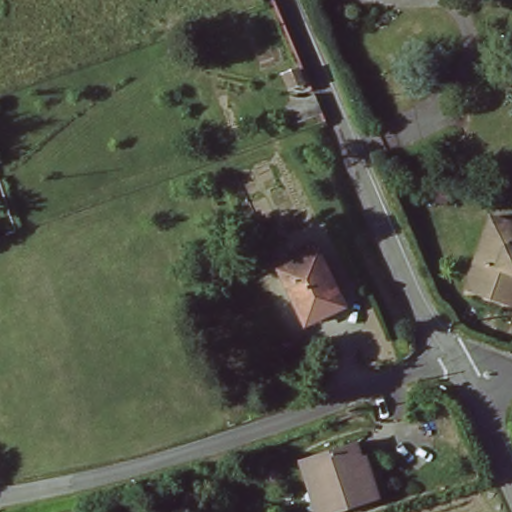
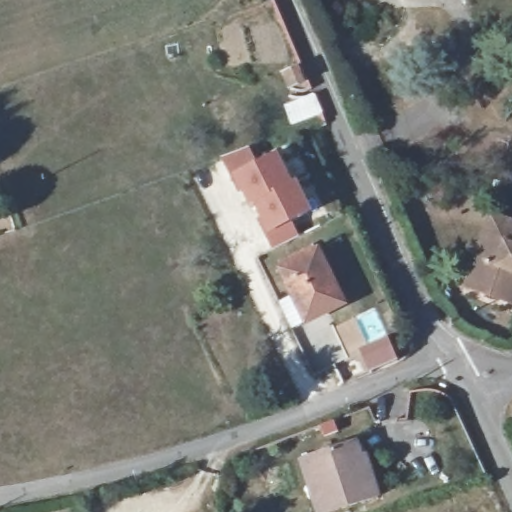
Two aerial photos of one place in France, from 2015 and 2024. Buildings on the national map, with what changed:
unchanged [(281,104),(310,94),(318,115),(289,124),(281,104)]
new [(256,204),(252,206),(244,190),(239,192),(233,180),(223,160),(254,150),(261,165),(280,156),(309,214),(290,223),(297,239),(273,250),(265,235),(259,223),(264,220),(256,204)]
unchanged [(471,286),(491,215),(512,221),(512,300),(471,286)]
unchanged [(302,325),(280,272),(278,268),(319,251),(322,257),(344,306),(302,325)]
unchanged [(366,459),(369,458),(383,497),(340,512),(321,512),(305,462),(361,443),(366,459)]

